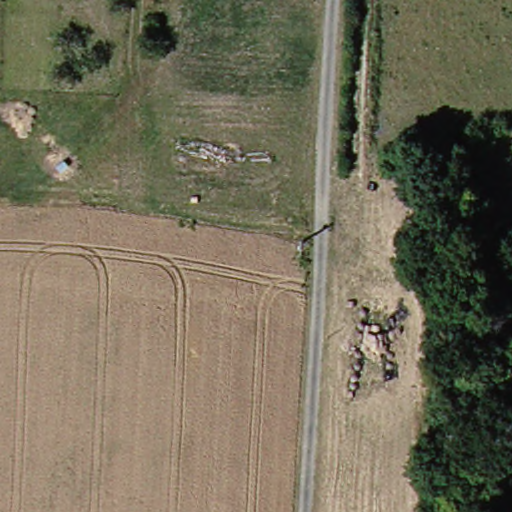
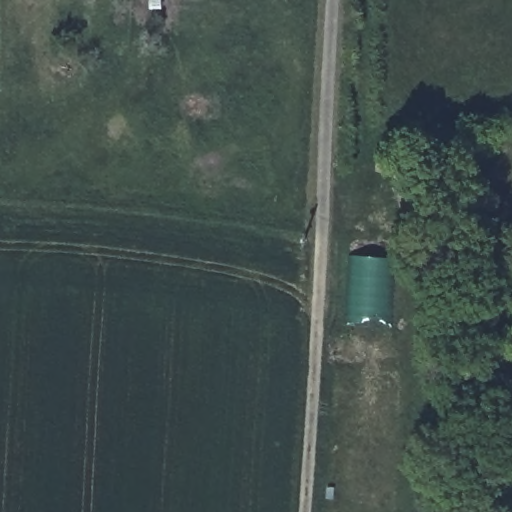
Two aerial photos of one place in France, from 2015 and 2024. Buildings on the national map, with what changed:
new [(392,256),(388,325),(345,323),(349,255),(392,256)]

